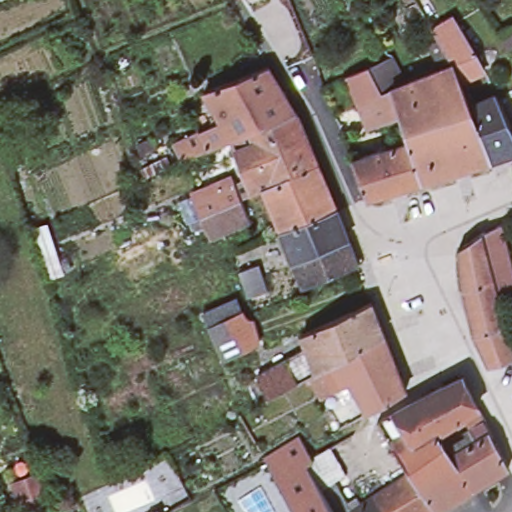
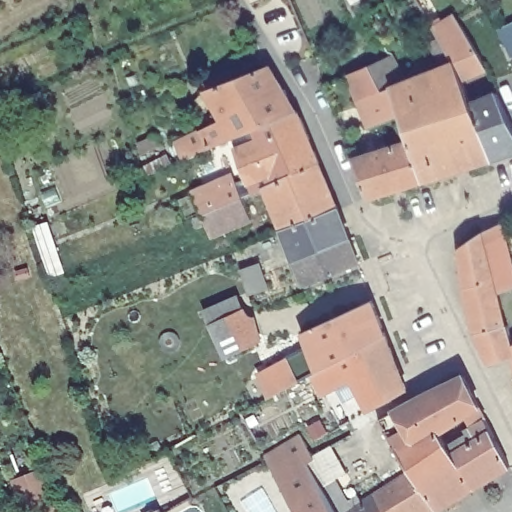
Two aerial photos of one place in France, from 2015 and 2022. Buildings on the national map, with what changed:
unchanged [(365,131),(345,79),(345,77),(365,69),(387,59),(399,84),(437,69),(427,45),(437,40),(435,38),(433,33),(454,22),(474,53),(482,69),(457,79),(467,106),(488,163),(420,184),(407,144),(398,118),(365,131)]
unchanged [(500,33),(501,33),(512,27),(512,48),(509,50),(500,33)]
unchanged [(200,130),(215,123),(212,116),(219,113),(207,91),(270,69),(300,115),(235,142),(212,151),(200,130)]
unchanged [(467,106),(494,97),(512,137),(512,155),(488,163),(467,106)]
unchanged [(235,142),(300,115),(320,166),(255,194),(235,142)]
unchanged [(139,148),(156,138),(162,148),(144,156),(139,148)]
unchanged [(365,202),(350,161),(407,144),(420,184),(365,202)]
unchanged [(255,194),(320,166),(339,211),(285,230),(269,194),(257,199),(255,194)]
unchanged [(194,221),(184,200),(225,184),(234,204),(244,226),(202,242),(197,229),(192,232),(188,224),(194,221)]
unchanged [(365,264),(360,265),(360,267),(305,288),(285,230),(339,211),(350,241),(356,239),(365,264)]
unchanged [(485,283),(473,235),(492,226),(508,288),(489,294),(485,283)]
unchanged [(452,251),(473,235),(485,283),(458,289),(452,251)]
unchanged [(241,272),(260,265),(269,292),(250,299),(241,272)]
unchanged [(458,289),(485,283),(489,294),(497,327),(467,334),(458,289)]
unchanged [(205,313),(240,298),(243,303),(245,304),(247,305),(252,305),(254,313),(258,328),(222,344),(214,329),(205,313)]
unchanged [(307,350),(300,334),(370,303),(382,339),(317,373),(307,350)]
unchanged [(484,367),(467,334),(497,327),(499,327),(504,346),(507,360),(484,367)]
unchanged [(302,381),(317,373),(382,339),(403,394),(365,414),(355,396),(339,404),(332,392),(320,399),(310,382),(305,385),(302,381)]
unchanged [(507,360),(504,346),(512,343),(512,376),(507,360)]
unchanged [(255,377),(307,350),(317,373),(302,381),(265,399),(255,377)]
unchanged [(372,426),(402,410),(430,395),(455,384),(471,414),(430,434),(428,432),(387,451),(372,426)]
unchanged [(404,479),(387,451),(428,432),(430,434),(439,451),(442,456),(482,437),(502,474),(437,512),(423,512),(404,479)]
unchanged [(270,486),(259,466),(256,462),(292,443),(304,463),(322,453),(337,479),(325,486),(337,508),(347,502),(352,510),(404,479),(423,512),(287,512),(270,486)]
unchanged [(17,484),(45,473),(60,512),(27,512),(17,484)]
unchanged [(162,492),(180,483),(187,494),(169,503),(162,492)]
unchanged [(151,507),(150,504),(159,499),(163,506),(154,512),(140,512),(151,507)]

